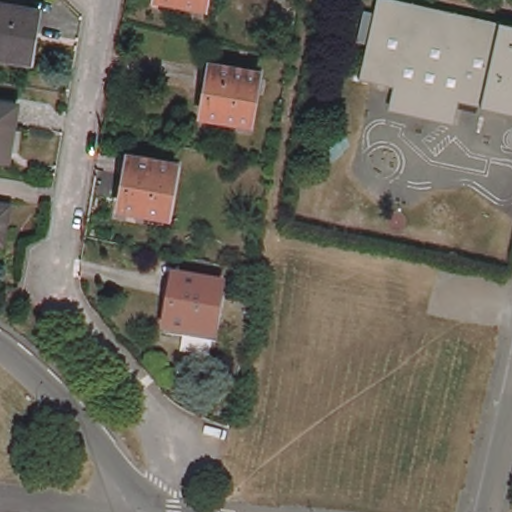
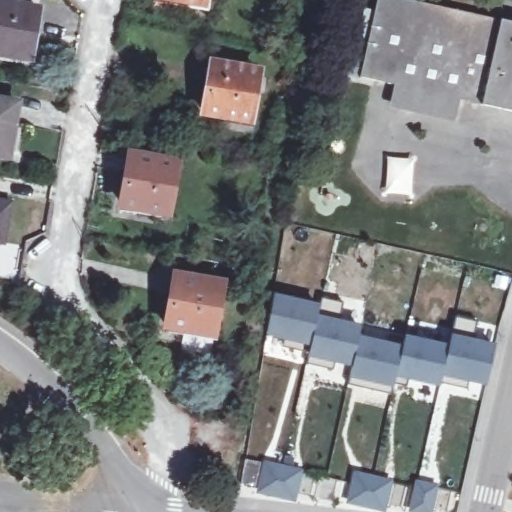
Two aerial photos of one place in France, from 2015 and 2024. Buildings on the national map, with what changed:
unchanged [(170,0),(203,0),(202,6),(170,0)]
unchanged [(512,114),(460,102),(457,117),(390,101),(393,85),(359,77),(377,0),(414,0),(512,23),(512,114)]
unchanged [(40,14),(32,62),(0,56),(0,6),(40,14)]
unchanged [(257,74),(248,122),(204,115),(213,65),(257,74)]
unchanged [(19,108),(10,161),(0,159),(0,105),(19,108)]
unchanged [(177,167),(168,217),(124,209),(131,161),(177,167)]
unchanged [(10,205),(5,245),(0,244),(0,203),(10,205)]
unchanged [(222,287),(214,337),(168,327),(177,278),(222,287)]
new [(320,305),(322,300),(342,305),(338,322),(360,326),(358,336),(402,347),(393,388),(392,395),(350,383),(350,378),(352,368),(332,362),(332,368),(307,363),(309,357),(310,352),(285,347),(288,340),(267,336),(275,296),(320,305)]
new [(477,322),(472,340),(495,346),(485,387),(473,384),(471,391),(442,383),(442,376),(452,336),(457,319),(477,322)]
new [(305,471),(297,502),(257,493),(265,462),(305,471)]

